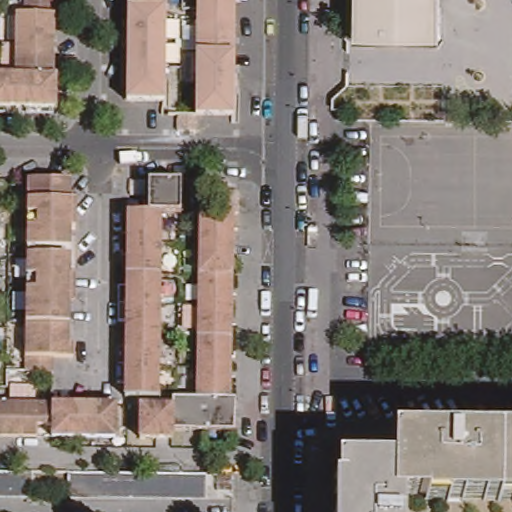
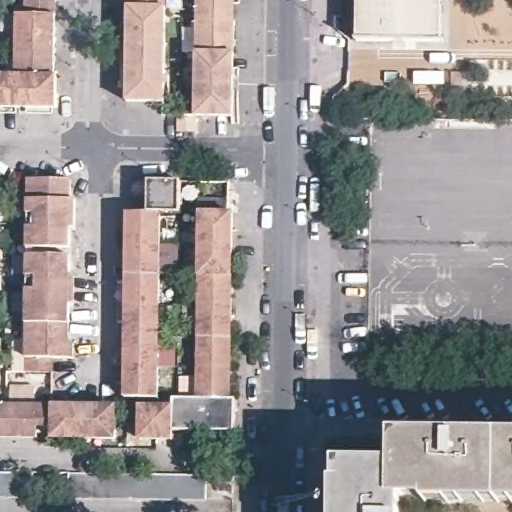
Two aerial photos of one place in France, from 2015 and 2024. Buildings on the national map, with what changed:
unchanged [(58,73),(61,73),(60,106),(0,105),(0,72),(20,72),(21,11),(30,11),(30,0),(60,0),(60,12),(58,72),(58,73)]
unchanged [(165,101),(132,101),(132,0),(166,0),(165,101)]
unchanged [(200,0),(238,0),(236,116),(198,113),(200,0)]
unchanged [(449,39),(361,37),(362,0),(449,0),(449,39)]
unchanged [(76,195),(81,195),(81,223),(77,223),(76,244),(31,242),(33,173),(76,174),(76,195)]
unchanged [(120,343),(128,343),(128,317),(120,317),(120,282),(129,282),(129,207),(150,207),(150,175),(182,176),(182,207),(161,207),(161,392),(128,392),(128,378),(120,378),(120,343)]
unchanged [(235,425),(176,425),(176,434),(143,434),(143,402),(176,402),(176,392),(201,392),(201,207),(233,207),(233,392),(236,392),(238,392),(238,425),(235,425)]
unchanged [(75,272),(80,272),(80,298),(75,298),(75,319),(75,338),(80,338),(80,353),(59,352),(59,367),(30,367),(31,249),(76,250),(75,272)]
unchanged [(119,433),(56,433),(55,425),(42,424),(42,436),(0,435),(0,401),(119,402),(119,433)]
unchanged [(346,512),(348,462),(350,461),(403,461),(404,432),(512,434),(512,498),(434,497),(433,489),(419,488),(404,489),(404,512),(339,512),(340,512),(346,512)]
unchanged [(0,498),(0,474),(35,474),(34,498),(0,498)]
unchanged [(206,500),(71,498),(72,475),(206,476),(206,500)]

